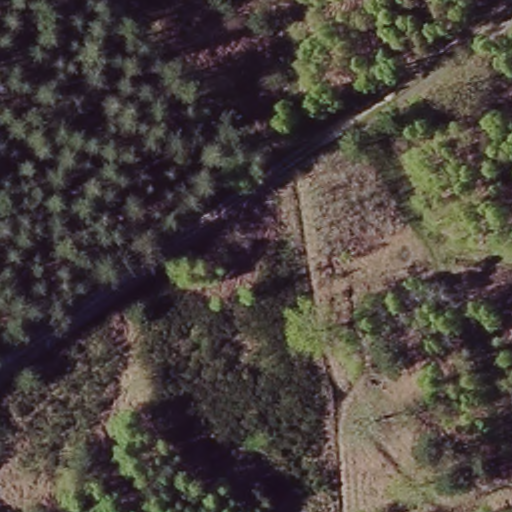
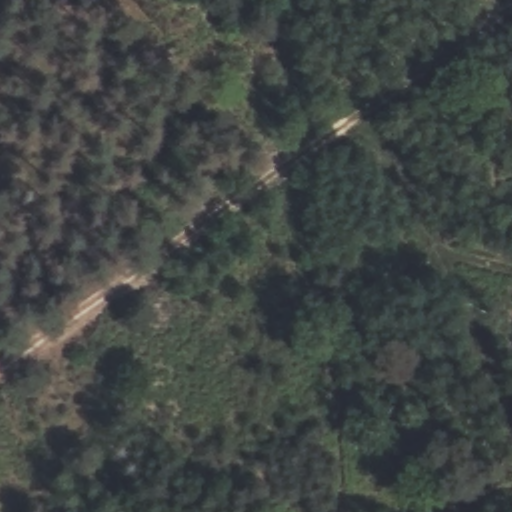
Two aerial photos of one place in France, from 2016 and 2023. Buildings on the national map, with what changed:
unchanged [(270,219),(252,200),(271,184),(284,203),(270,219)]

